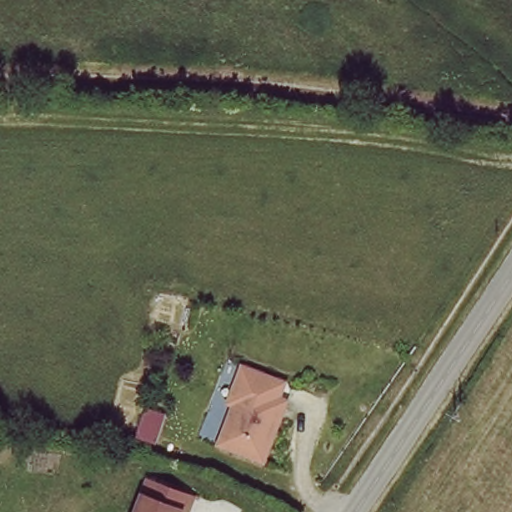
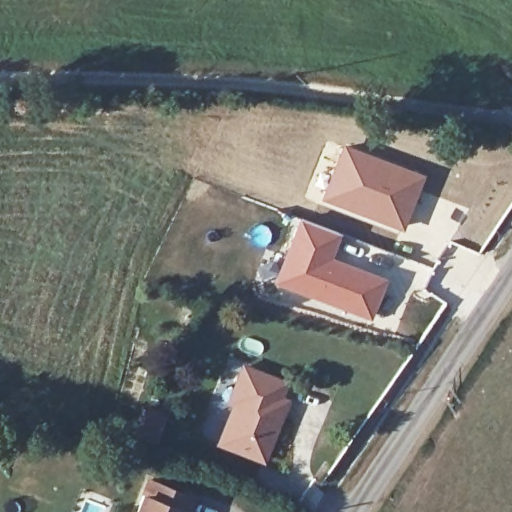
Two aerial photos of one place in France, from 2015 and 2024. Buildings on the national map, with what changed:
new [(342,143),(426,174),(402,232),(320,201),(342,143)]
new [(298,216),(342,233),(333,256),(389,277),(372,321),(272,285),(298,216)]
unchanged [(282,380),(276,395),(284,398),(279,414),(260,458),(218,440),(242,383),(235,380),(242,364),(282,380)]
unchanged [(189,491),(183,512),(133,512),(142,479),(189,491)]

